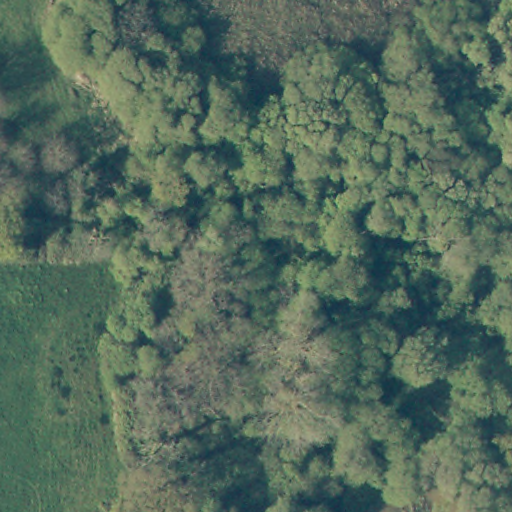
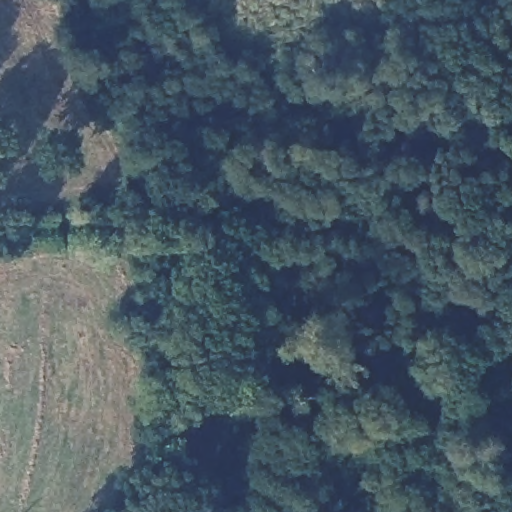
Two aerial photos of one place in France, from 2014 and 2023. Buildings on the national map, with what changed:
[]

